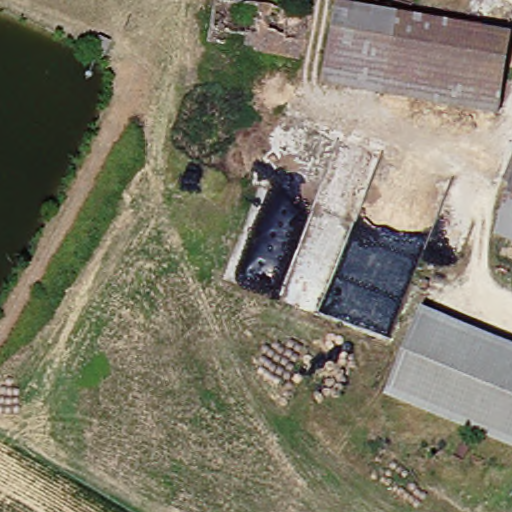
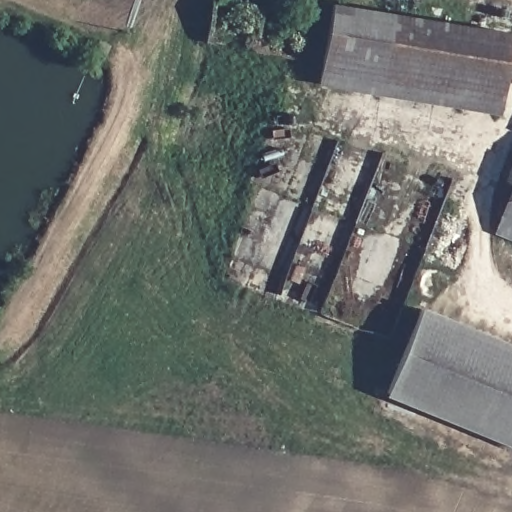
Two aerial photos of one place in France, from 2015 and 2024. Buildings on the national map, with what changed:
unchanged [(210,34),(214,1),(258,7),(255,35),(264,38),(262,55),(244,52),(207,46),(210,34)]
unchanged [(385,15),(371,97),(315,87),(327,4),(385,15)]
unchanged [(311,17),(301,63),(262,55),(264,38),(255,35),(258,7),(311,17)]
unchanged [(371,97),(385,15),(500,33),(490,112),(371,97)]
unchanged [(512,195),(512,246),(494,238),(512,195)]
unchanged [(420,309),(512,350),(512,452),(385,398),(420,309)]

